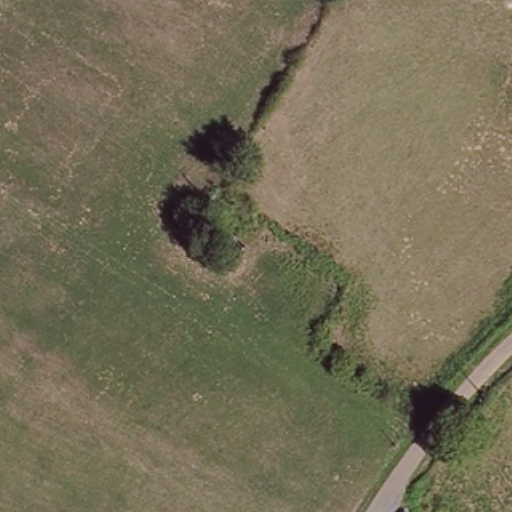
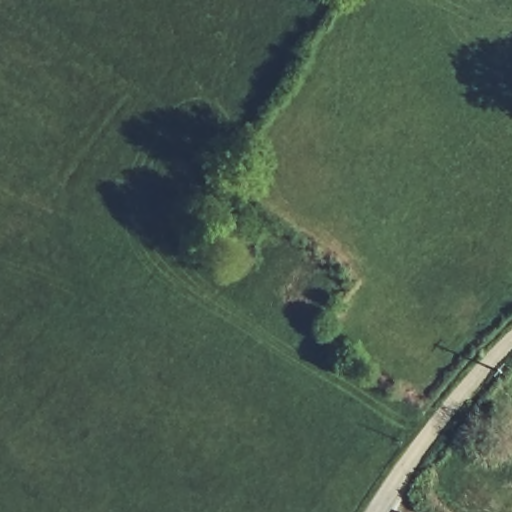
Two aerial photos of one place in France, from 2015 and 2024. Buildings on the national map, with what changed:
unchanged [(215,219),(247,240),(235,257),(204,236),(215,219)]

